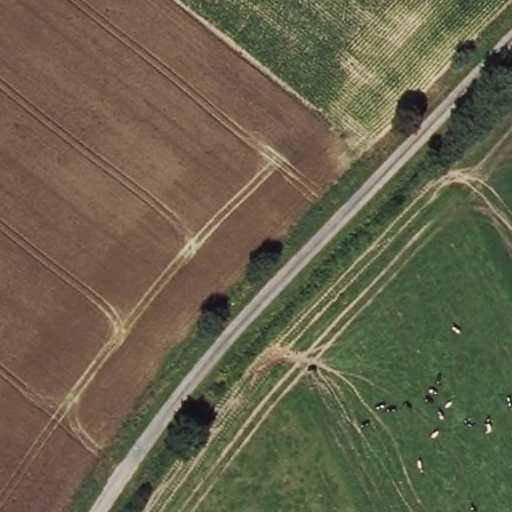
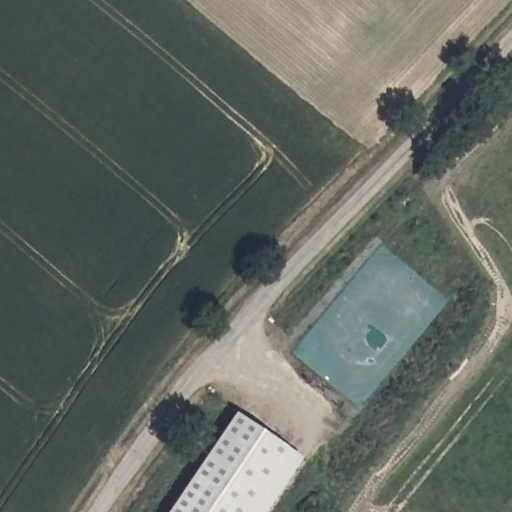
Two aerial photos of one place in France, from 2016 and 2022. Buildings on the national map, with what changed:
new [(265,512),(167,512),(235,412),(302,457),(265,512)]

